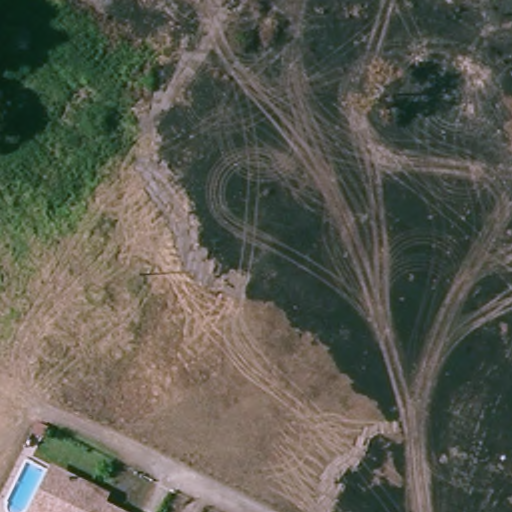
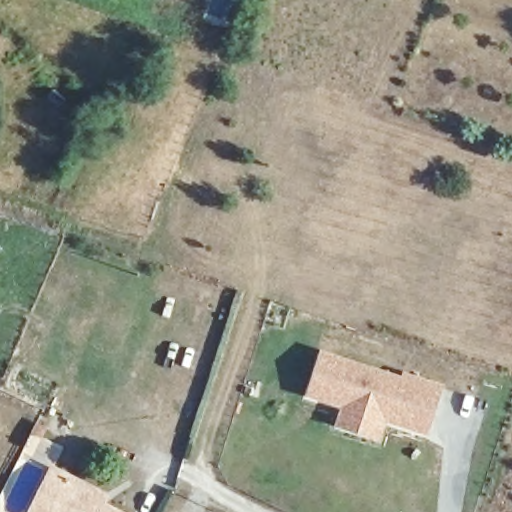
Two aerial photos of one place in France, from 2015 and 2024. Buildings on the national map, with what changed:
new [(402,375),(403,370),(444,384),(428,438),(386,425),(381,442),(333,427),(340,408),(305,397),(320,350),(402,375)]
unchanged [(41,415),(37,423),(27,419),(31,410),(41,415)]
unchanged [(103,500),(98,510),(104,512),(32,512),(49,476),(62,482),(97,498),(103,500)]

